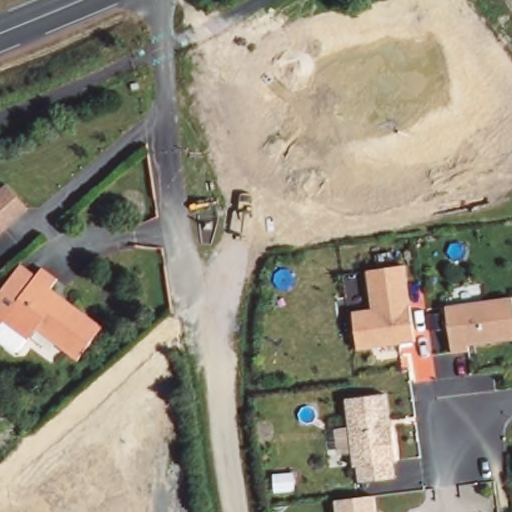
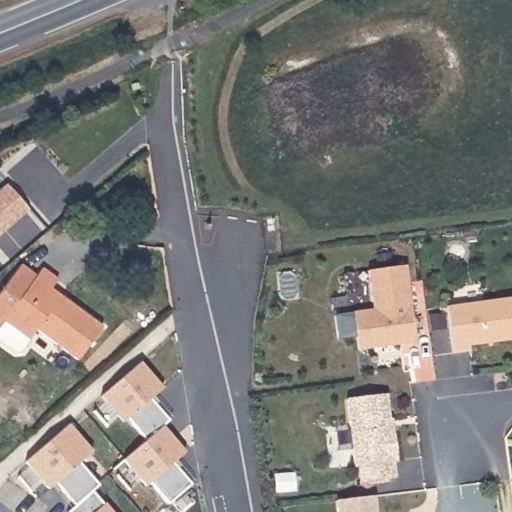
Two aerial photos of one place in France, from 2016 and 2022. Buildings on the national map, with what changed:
unchanged [(0,227),(0,183),(3,180),(25,206),(0,227)]
unchanged [(47,267),(61,278),(55,287),(109,326),(84,360),(39,327),(21,350),(16,350),(0,338),(0,292),(24,260),(42,274),(47,267)]
unchanged [(408,265),(415,344),(357,348),(355,310),(372,308),(369,268),(408,265)]
unchanged [(512,295),(512,339),(474,343),(473,350),(452,353),(447,305),(512,295)]
new [(161,387),(148,398),(169,421),(161,427),(184,451),(172,462),(190,482),(168,504),(149,481),(146,485),(125,460),(146,440),(125,418),(123,421),(101,396),(141,361),(161,387)]
unchanged [(387,392),(399,476),(359,481),(350,397),(387,392)]
new [(54,484),(48,490),(25,462),(68,425),(92,450),(80,462),(99,485),(93,492),(104,504),(110,512),(66,512),(73,507),(54,484)]
unchanged [(378,512),(338,512),(337,498),(376,496),(378,512)]

